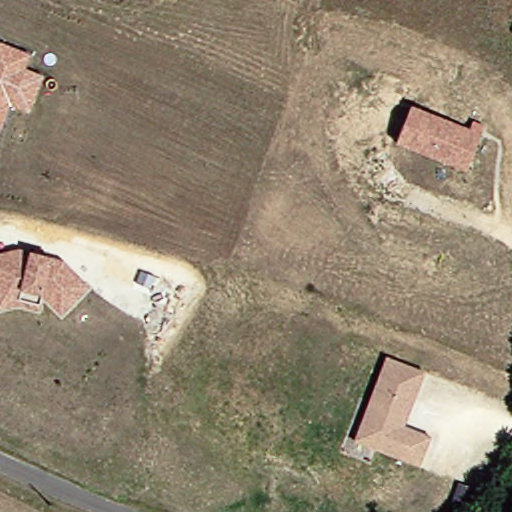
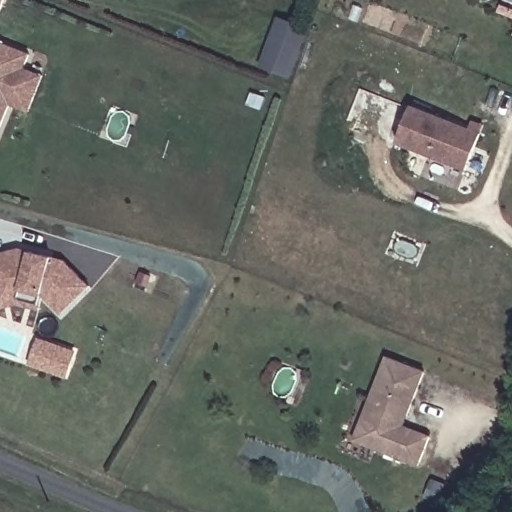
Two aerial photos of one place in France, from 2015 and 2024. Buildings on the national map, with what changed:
new [(0,13),(0,0),(6,0),(0,13)]
new [(279,19),(306,30),(300,47),(289,78),(261,68),(272,37),(279,19)]
unchanged [(25,69),(44,75),(30,114),(10,108),(0,134),(0,41),(31,53),(25,69)]
unchanged [(469,128),(474,118),(486,123),(467,172),(395,146),(411,105),(469,128)]
unchanged [(0,309),(0,254),(23,250),(66,263),(90,290),(62,316),(44,297),(39,311),(18,305),(0,309)]
new [(78,351),(68,380),(29,367),(38,338),(78,351)]
unchanged [(362,425),(387,356),(424,369),(406,424),(433,434),(422,464),(378,448),(356,441),(362,425)]
unchanged [(472,505),(469,512),(453,512),(458,500),(472,505)]

